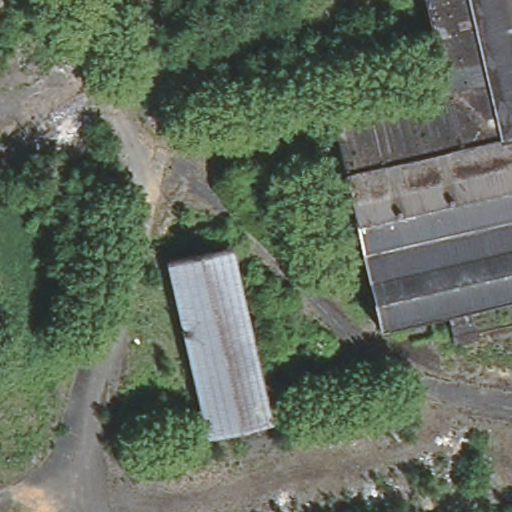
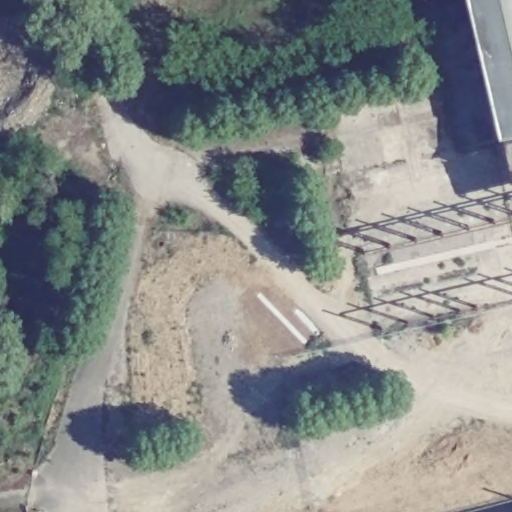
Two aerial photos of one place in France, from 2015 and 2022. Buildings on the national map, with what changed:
unchanged [(499,129),(469,0),(512,0),(512,126),(499,129)]
demolished [(507,293),(377,324),(340,171),(454,141),(469,137),(499,129),(512,126),(512,292),(507,293)]
demolished [(227,247),(267,424),(205,438),(165,261),(227,247)]
demolished [(389,508),(417,500),(403,447),(449,434),(469,512),(390,512),(389,508)]
demolished [(507,450),(512,469),(512,471),(484,479),(479,457),(507,450)]

